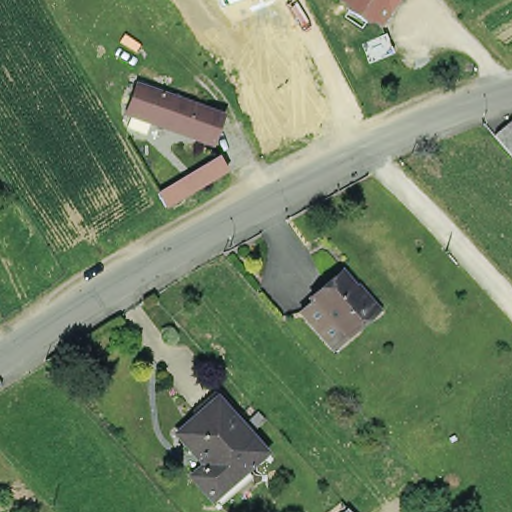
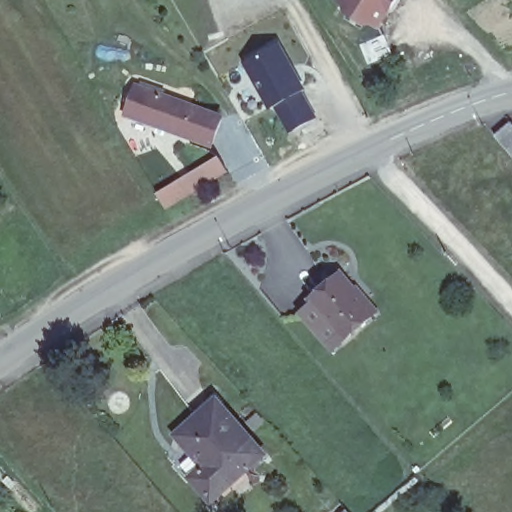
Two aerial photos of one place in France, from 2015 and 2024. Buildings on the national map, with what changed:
unchanged [(385,28),(378,25),(371,26),(353,15),(351,8),(345,4),(340,0),(402,0),(385,28)]
new [(317,123),(285,141),(242,59),(275,37),(317,123)]
unchanged [(463,62),(473,61),(475,69),(464,70),(463,62)]
unchanged [(166,127),(127,113),(136,86),(143,88),(195,106),(221,116),(213,138),(212,143),(166,127)]
unchanged [(495,134),(511,120),(512,121),(512,154),(495,134)]
unchanged [(191,174),(194,173),(220,156),(228,169),(201,186),(200,187),(191,174)]
unchanged [(301,315),(313,305),(311,302),(341,276),(355,292),(354,293),(363,304),(365,303),(376,315),(345,342),(334,352),(301,315)]
unchanged [(212,508),(207,502),(188,480),(201,469),(173,438),(212,405),(258,457),(240,473),(245,479),(212,508)]
new [(354,512),(331,512),(345,500),(354,512)]

